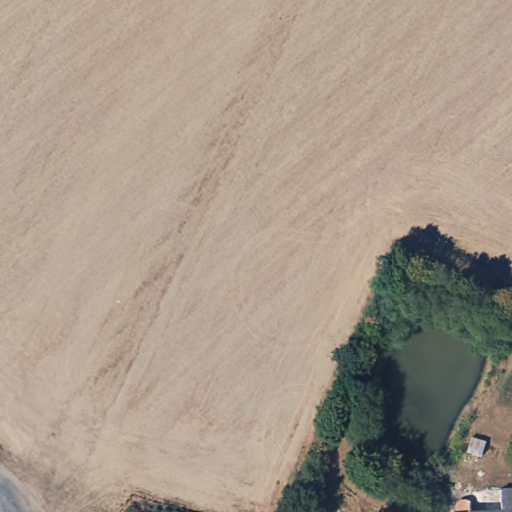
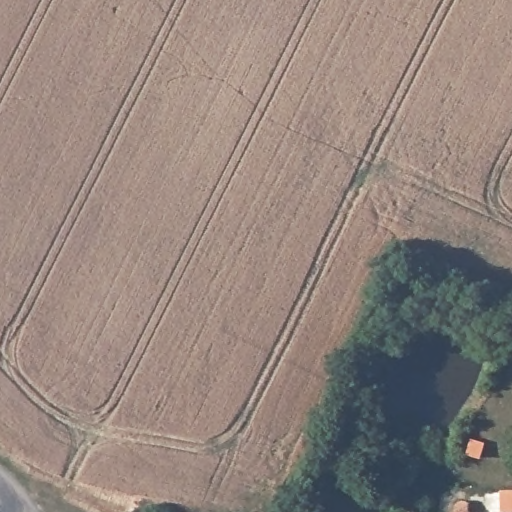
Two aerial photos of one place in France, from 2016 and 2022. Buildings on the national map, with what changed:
unchanged [(512,512),(459,512),(460,508),(455,506),(452,503),(452,499),(453,495),(457,492),(461,491),(467,493),(467,481),(487,481),(487,493),(512,493),(512,512)]
unchanged [(129,509),(133,507),(137,508),(142,511),(143,512),(125,512),(126,512),(129,509)]

